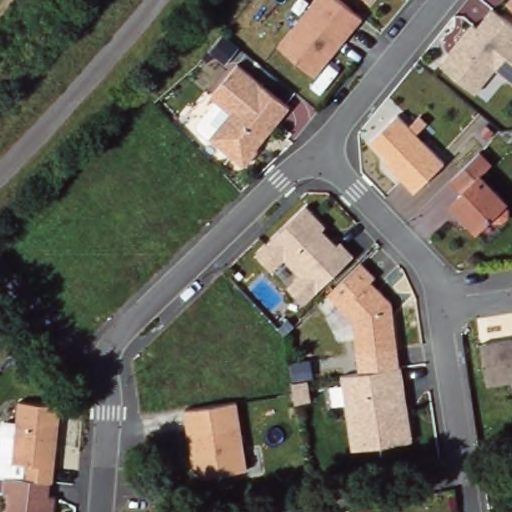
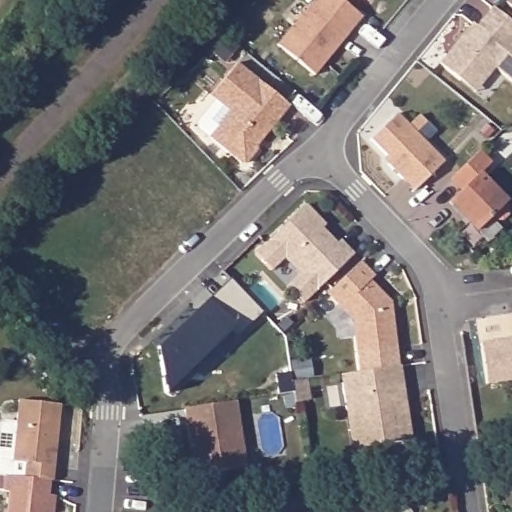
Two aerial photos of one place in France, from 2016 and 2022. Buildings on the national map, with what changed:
unchanged [(316,70),(283,41),(316,0),(347,0),(365,15),(316,70)]
unchanged [(508,3),(510,0),(512,0),(512,6),(508,3)]
unchanged [(512,22),(512,80),(494,66),(478,90),(442,63),(489,6),(512,22)]
unchanged [(289,105),(244,163),(214,134),(231,111),(209,92),(236,60),(289,105)]
unchanged [(445,160),(413,192),(372,136),(397,112),(445,160)]
unchanged [(495,160),(480,175),(509,197),(477,231),(449,199),(462,189),(451,180),(477,150),(495,160)]
unchanged [(352,254),(304,302),(286,292),(299,274),(280,259),(270,267),(255,253),(304,203),(352,254)]
unchanged [(379,271),(374,279),(396,296),(399,343),(357,348),(356,316),(333,292),(364,260),(379,271)]
new [(231,279),(239,287),(263,313),(236,339),(230,333),(166,394),(166,393),(159,348),(197,311),(231,279)]
unchanged [(492,387),(484,342),(512,337),(512,383),(492,387)]
new [(295,403),(292,383),(289,363),(305,361),(307,381),(311,401),(295,403)]
unchanged [(414,440),(355,446),(348,369),(403,363),(414,440)]
unchanged [(20,396),(61,400),(55,461),(13,457),(20,396)]
unchanged [(237,401),(246,467),(193,474),(185,408),(237,401)]
unchanged [(10,487),(55,491),(53,511),(47,510),(47,512),(7,512),(10,487)]

